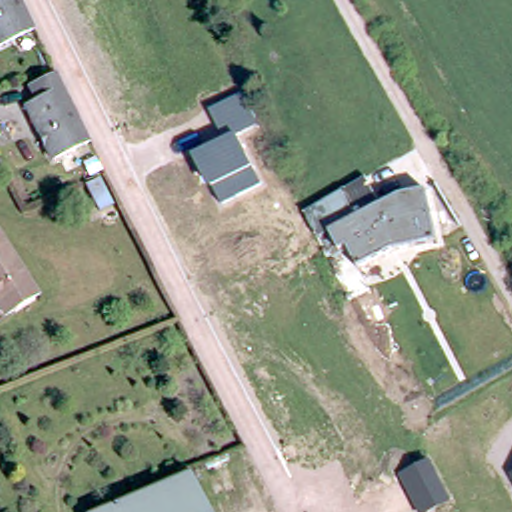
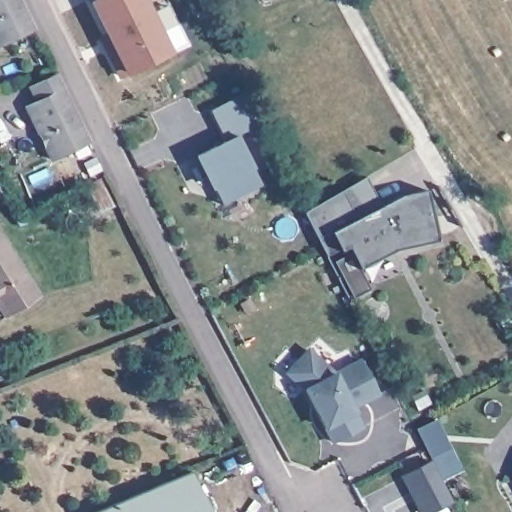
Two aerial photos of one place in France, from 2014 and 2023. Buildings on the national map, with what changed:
unchanged [(0,0),(21,0),(37,33),(0,51),(0,0)]
new [(92,0),(144,0),(151,13),(168,5),(176,23),(186,42),(169,51),(121,75),(109,51),(102,37),(109,34),(92,0)]
unchanged [(53,159),(26,105),(38,100),(31,85),(58,73),(90,142),(53,159)]
unchanged [(222,204),(213,187),(209,189),(191,155),(221,141),(207,109),(243,92),(259,124),(236,134),(252,167),(261,184),(222,204)]
unchanged [(381,204),(403,194),(426,191),(435,239),(395,247),(358,266),(346,245),(339,250),(329,230),(318,237),(304,213),(343,189),(366,176),(381,204)]
unchanged [(112,206),(100,211),(89,186),(101,181),(112,206)]
unchanged [(0,230),(39,292),(8,312),(0,300),(0,230)]
new [(379,398),(355,408),(357,412),(364,428),(331,444),(324,430),(304,389),(284,374),(308,347),(336,370),(359,358),(379,398)]
new [(416,429),(434,419),(461,470),(441,480),(430,460),(416,429)]
unchanged [(430,512),(418,512),(399,477),(430,460),(452,501),(430,512)]
unchanged [(208,512),(99,512),(189,473),(208,512)]
unchanged [(511,475),(512,474),(512,478),(511,475)]

